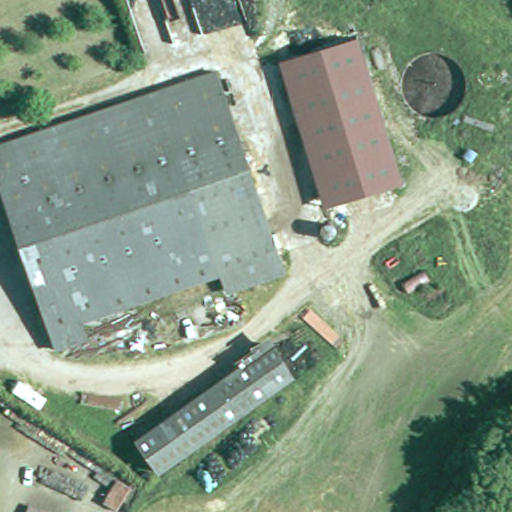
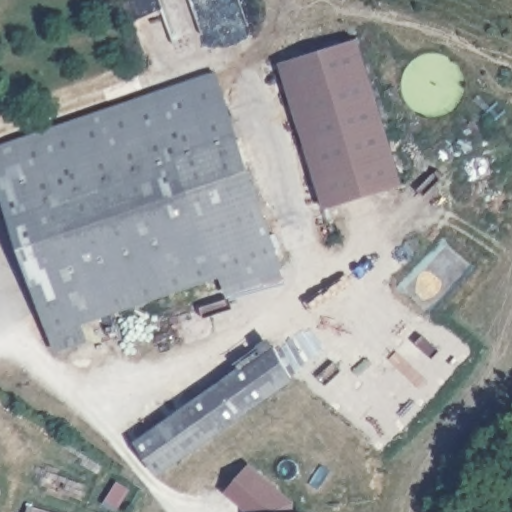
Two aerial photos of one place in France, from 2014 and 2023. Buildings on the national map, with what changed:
unchanged [(354,42),(400,186),(326,210),(280,67),(354,42)]
unchanged [(278,258),(80,328),(83,339),(53,350),(0,197),(0,150),(215,75),(278,258)]
unchanged [(132,439),(268,339),(291,370),(154,467),(132,439)]
new [(250,461),(295,500),(295,512),(251,512),(225,491),(250,461)]
unchanged [(69,512),(28,512),(31,501),(69,512)]

